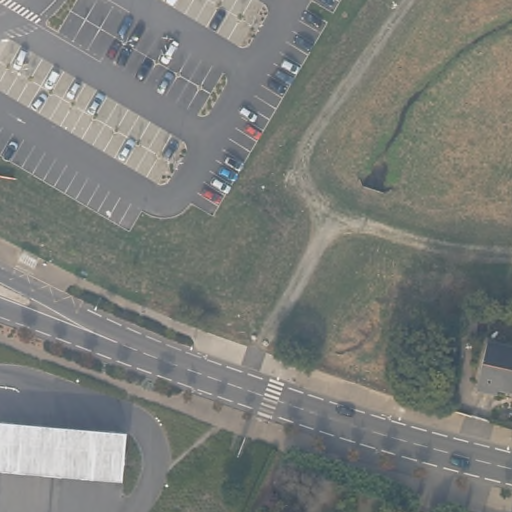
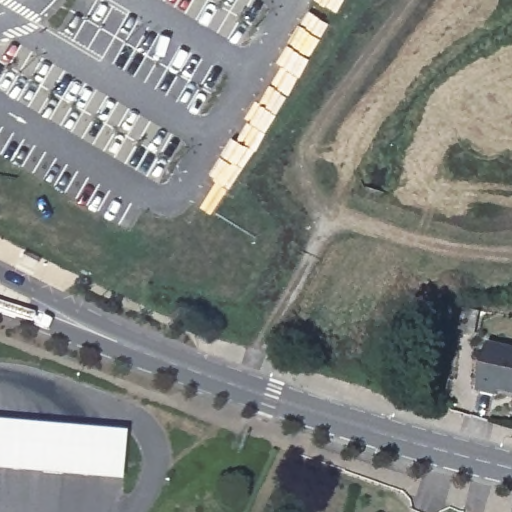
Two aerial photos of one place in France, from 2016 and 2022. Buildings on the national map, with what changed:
unchanged [(459,312),(473,314),(467,340),(454,337),(459,312)]
unchanged [(512,398),(497,395),(496,400),(470,395),(481,345),(512,352),(512,398)]
unchanged [(127,433),(125,457),(122,482),(115,481),(0,471),(0,422),(127,433)]

